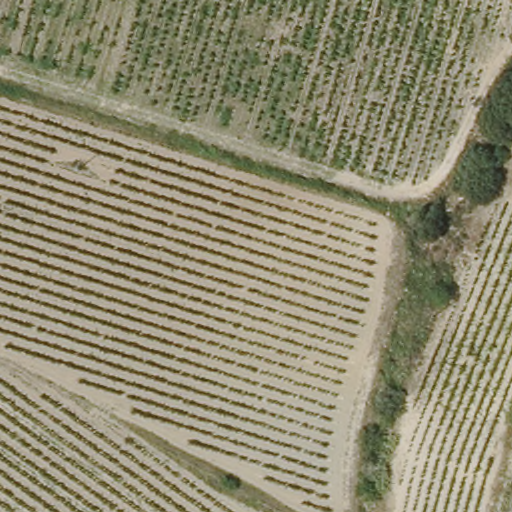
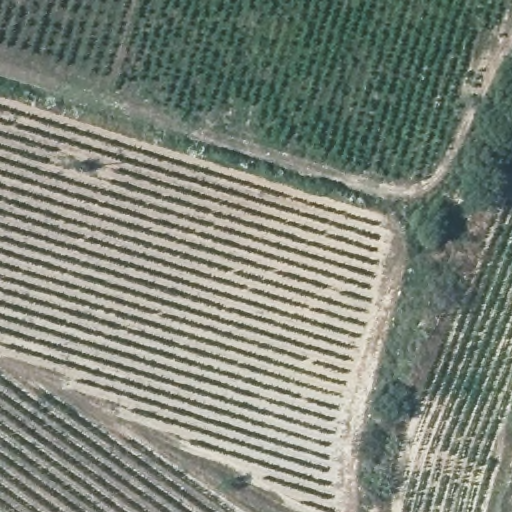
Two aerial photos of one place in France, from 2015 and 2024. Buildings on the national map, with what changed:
[]

